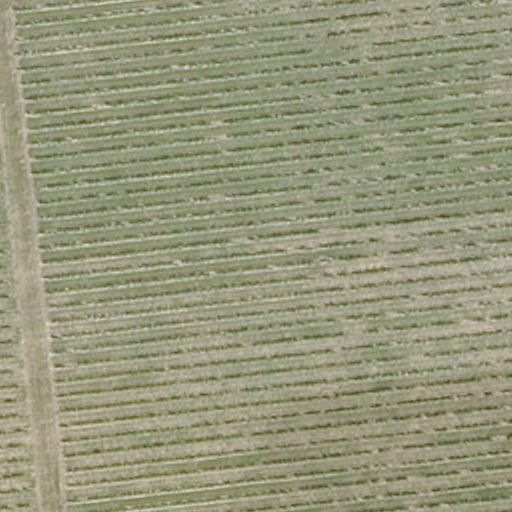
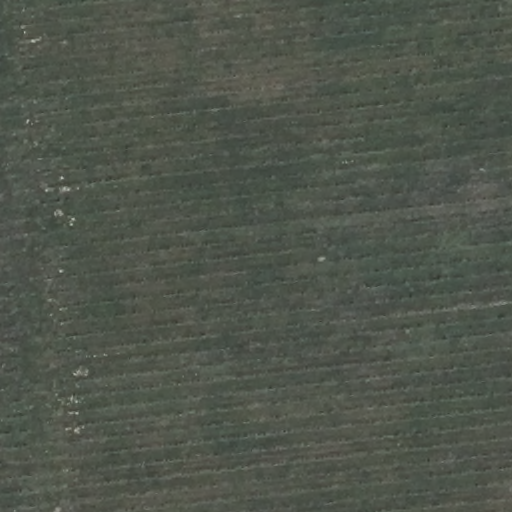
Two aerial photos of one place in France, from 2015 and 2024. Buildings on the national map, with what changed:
[]

